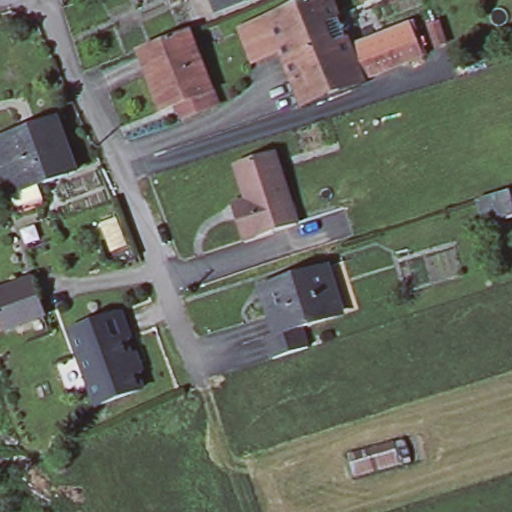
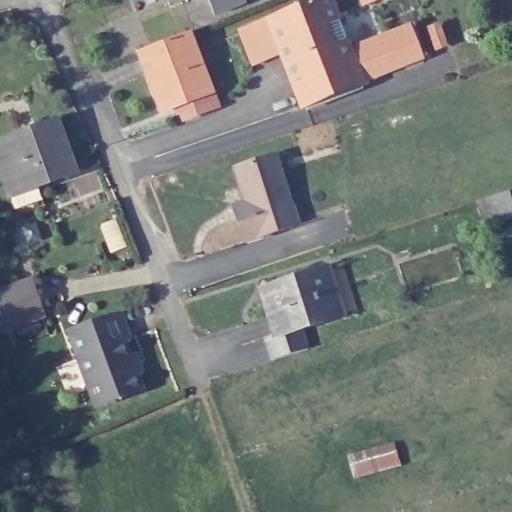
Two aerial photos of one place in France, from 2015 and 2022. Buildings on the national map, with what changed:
unchanged [(215,17),(207,0),(243,0),(245,5),(215,17)]
unchanged [(362,0),(378,0),(363,6),(362,0)]
unchanged [(369,84),(360,87),(302,109),(279,46),(271,49),(272,52),(268,58),(252,64),(240,32),(270,22),(328,1),(337,22),(350,58),(358,54),(408,32),(415,49),(421,64),(369,84)]
unchanged [(193,40),(217,101),(165,121),(142,60),(193,40)]
unchanged [(21,211),(15,192),(0,148),(0,139),(1,141),(44,127),(43,124),(63,117),(80,170),(44,182),(50,201),(21,211)]
unchanged [(275,154),(298,222),(246,240),(235,205),(245,201),(235,169),(275,154)]
unchanged [(512,217),(481,226),(473,199),(510,186),(512,193),(512,217)]
unchanged [(278,335),(266,296),(263,287),(283,281),(332,265),(340,290),(336,292),(343,313),(305,327),(310,346),(275,357),(270,337),(278,335)]
unchanged [(34,287),(44,320),(5,332),(0,316),(0,298),(34,287)]
unchanged [(87,327),(85,321),(112,312),(118,311),(127,335),(122,337),(127,352),(132,352),(138,368),(133,371),(138,387),(92,402),(69,333),(87,327)]
unchanged [(395,437),(402,463),(353,477),(348,451),(395,437)]

